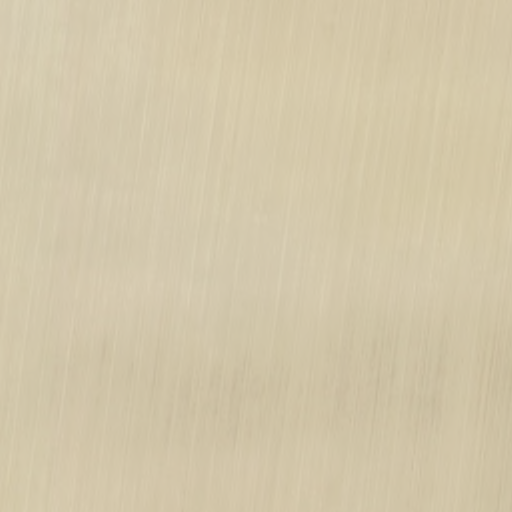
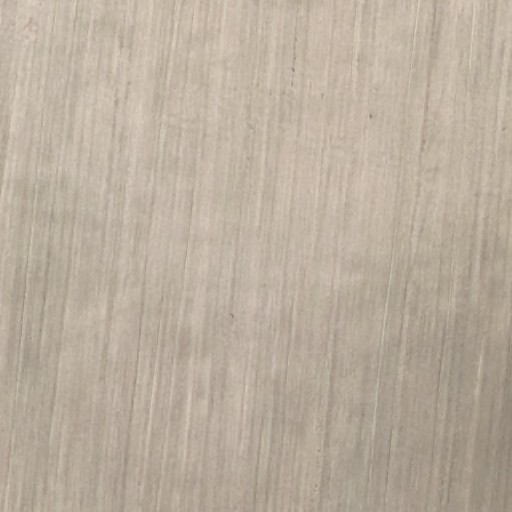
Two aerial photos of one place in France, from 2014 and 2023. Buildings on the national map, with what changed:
[]

